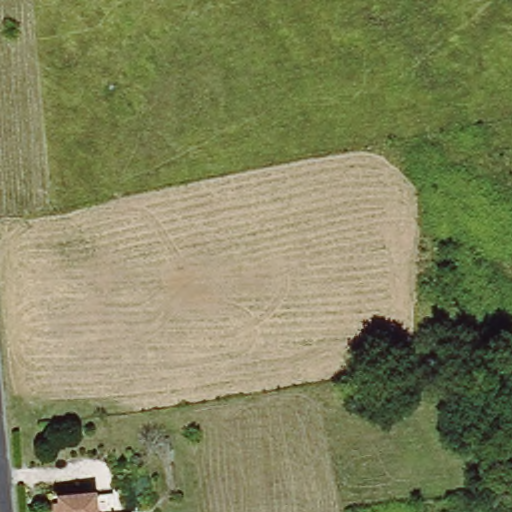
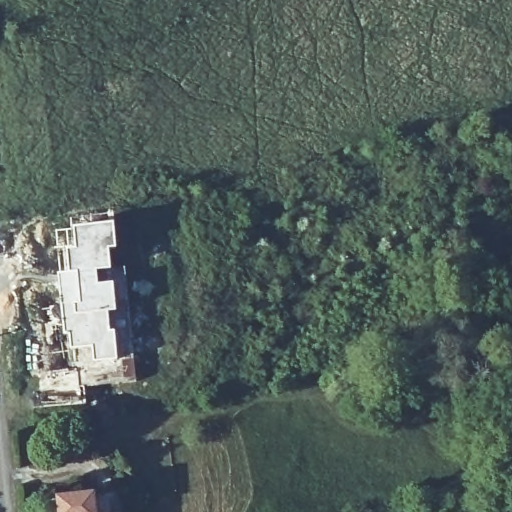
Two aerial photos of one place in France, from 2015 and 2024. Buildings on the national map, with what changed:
new [(115,246),(107,247),(109,267),(125,265),(135,381),(86,387),(87,401),(42,406),(39,371),(74,367),(70,331),(65,332),(59,272),(69,270),(66,251),(76,249),(74,228),(112,224),(115,246)]
unchanged [(91,495),(93,512),(58,512),(57,498),(91,495)]

